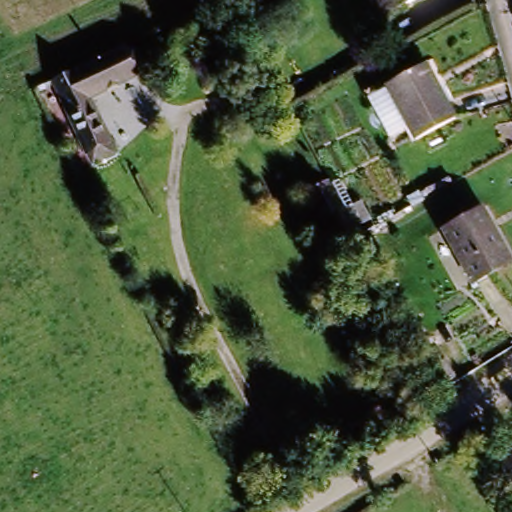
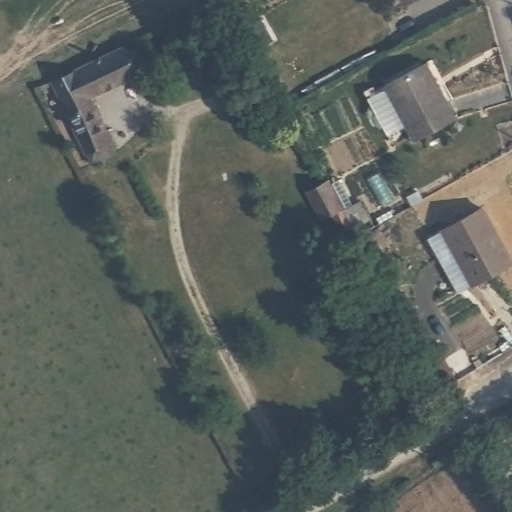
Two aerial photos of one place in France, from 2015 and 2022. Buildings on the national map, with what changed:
unchanged [(404,0),(414,0),(407,5),(404,0)]
unchanged [(86,99),(114,156),(92,168),(86,156),(82,155),(50,92),(37,99),(33,91),(46,84),(65,75),(119,48),(133,75),(86,99)]
unchanged [(419,65),(449,118),(412,139),(382,86),(419,65)]
unchanged [(306,191),(328,179),(350,224),(339,229),(331,215),(320,218),(306,191)]
unchanged [(481,206),(511,259),(473,281),(443,228),(481,206)]

